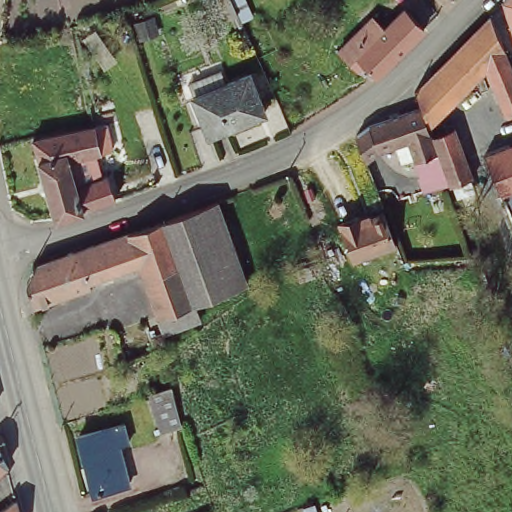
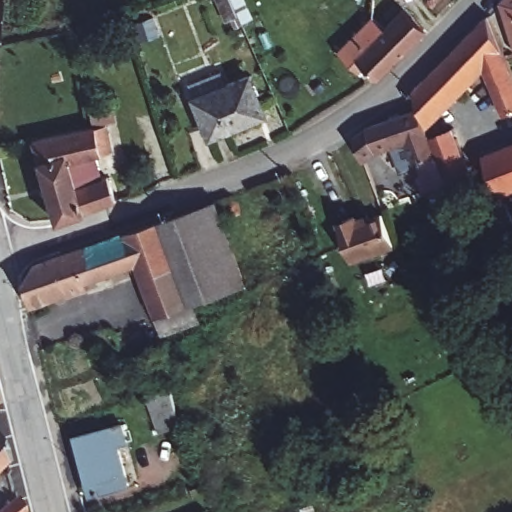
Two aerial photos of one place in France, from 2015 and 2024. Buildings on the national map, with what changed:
unchanged [(238,17),(225,24),(215,0),(230,0),(238,17)]
unchanged [(504,0),(512,0),(512,24),(504,1),(504,0)]
unchanged [(385,27),(403,9),(424,30),(377,75),(365,62),(357,70),(339,51),(374,16),(385,27)]
unchanged [(512,117),(500,121),(483,77),(437,122),(441,137),(452,133),(464,165),(472,186),(449,194),(448,191),(421,114),(415,95),(490,20),(512,74),(512,117)]
unchanged [(272,120),(216,146),(199,107),(192,93),(227,78),(233,92),(255,82),(272,120)]
unchanged [(83,106),(87,105),(108,101),(113,120),(100,122),(106,148),(95,151),(103,176),(110,196),(51,217),(30,137),(87,126),(83,106)]
unchanged [(427,182),(430,181),(424,163),(417,165),(415,160),(396,167),(392,154),(377,159),(367,169),(357,142),(367,135),(368,134),(421,114),(448,191),(433,196),(427,182)]
unchanged [(512,196),(502,200),(498,190),(485,157),(512,147),(512,196)]
unchanged [(247,292),(192,311),(197,327),(163,340),(143,277),(135,281),(132,272),(87,288),(90,295),(34,316),(27,288),(37,271),(217,206),(247,292)]
unchanged [(357,216),(359,220),(383,211),(395,245),(352,259),(339,222),(357,216)]
unchanged [(170,388),(182,427),(162,433),(150,396),(170,388)]
unchanged [(122,425),(127,445),(118,447),(129,489),(92,498),(77,437),(122,425)]
unchanged [(0,474),(0,451),(4,458),(7,468),(0,474)]
unchanged [(317,500),(321,512),(310,512),(307,503),(314,501),(317,500)]
unchanged [(17,512),(7,512),(15,506),(17,512)]

